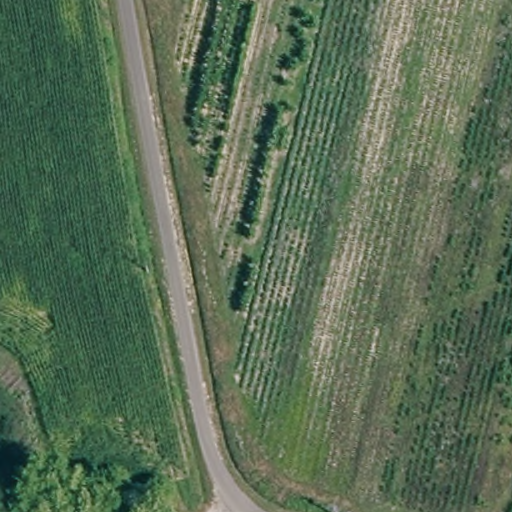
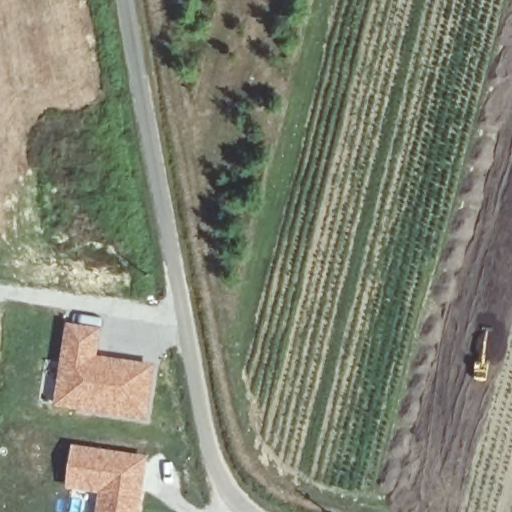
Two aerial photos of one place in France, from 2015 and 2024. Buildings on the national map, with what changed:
new [(66,323),(102,328),(98,356),(157,366),(148,423),(55,407),(66,323)]
new [(73,445),(147,458),(139,512),(95,512),(97,495),(66,489),(73,445)]

